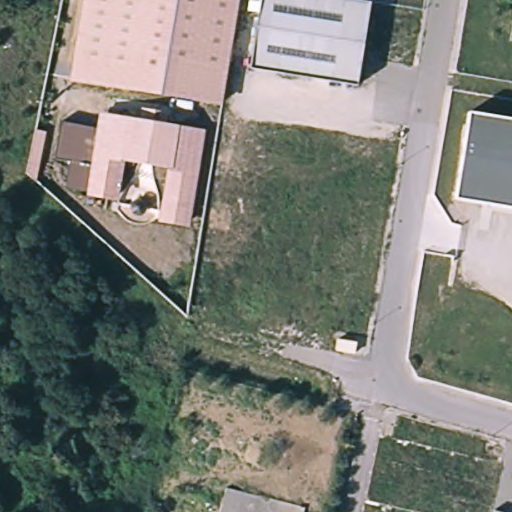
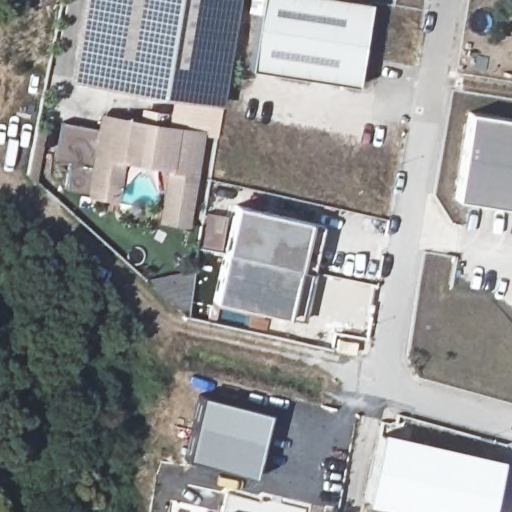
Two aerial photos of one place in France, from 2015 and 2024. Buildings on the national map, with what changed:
unchanged [(232,98),(81,85),(89,0),(241,0),(232,98)]
unchanged [(353,84),(246,68),(257,0),(354,0),(366,2),(353,84)]
new [(172,93),(225,98),(216,137),(204,135),(205,131),(166,124),(172,93)]
unchanged [(471,108),(512,115),(512,206),(456,196),(471,108)]
unchanged [(156,222),(166,170),(123,162),(117,202),(85,197),(85,192),(64,189),(68,162),(55,159),(61,122),(96,128),(99,112),(205,131),(188,227),(156,222)]
unchanged [(46,133),(35,183),(25,174),(34,130),(46,133)]
new [(298,269),(223,252),(235,205),(309,222),(321,225),(310,272),(298,269)]
new [(298,269),(310,272),(301,321),(285,317),(212,300),(223,252),(298,269)]
new [(185,315),(151,288),(147,279),(193,272),(185,315)]
unchanged [(346,328),(365,331),(362,342),(344,338),(346,328)]
new [(183,456),(198,393),(268,412),(252,474),(183,456)]
new [(489,512),(405,512),(363,502),(380,431),(501,460),(489,512)]
unchanged [(305,508),(304,512),(219,512),(226,486),(305,508)]

